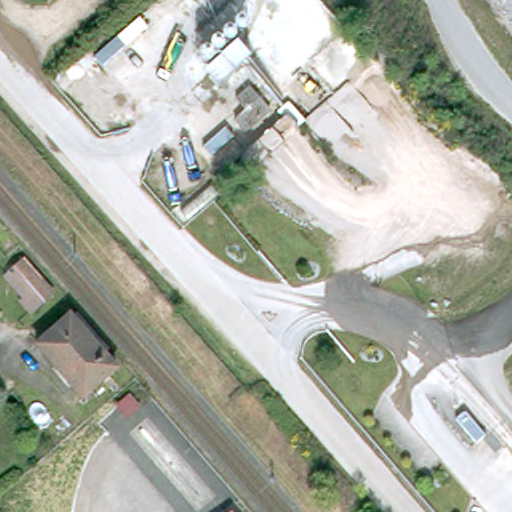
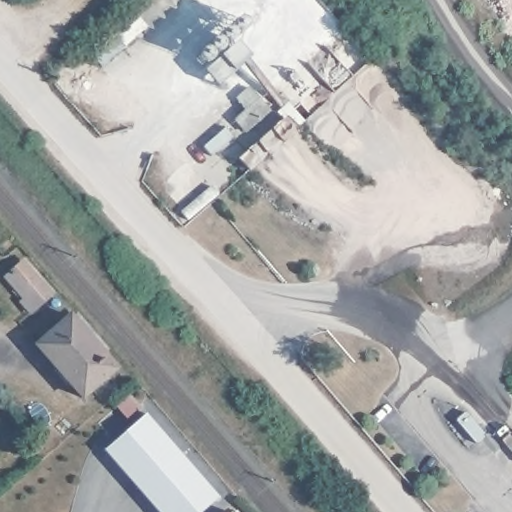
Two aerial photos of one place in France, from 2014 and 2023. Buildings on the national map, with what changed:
unchanged [(210,66),(222,55),(239,41),(251,57),(235,71),(217,85),(205,71),(210,66)]
unchanged [(25,297),(7,277),(23,264),(50,294),(31,312),(20,301),(25,297)]
unchanged [(36,343),(69,316),(115,367),(82,396),(36,343)]
unchanged [(137,406),(125,417),(117,406),(128,396),(137,406)]
new [(217,495),(199,512),(157,512),(102,449),(145,412),(217,495)]

